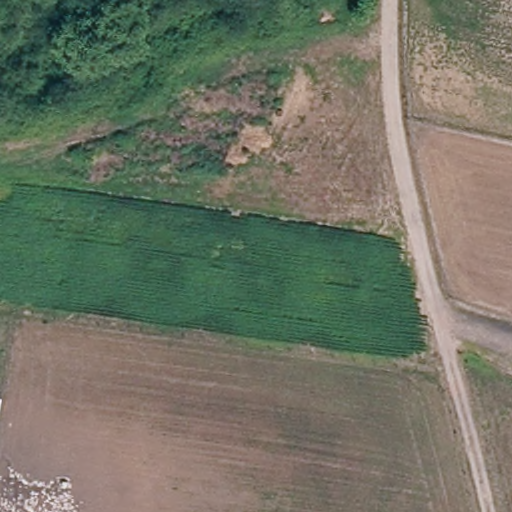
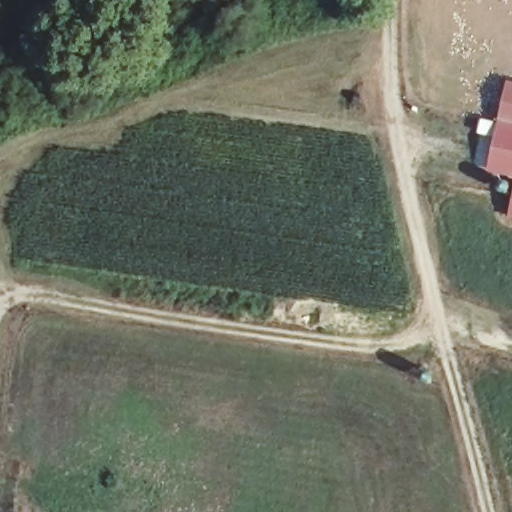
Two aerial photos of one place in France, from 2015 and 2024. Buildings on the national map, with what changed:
new [(512,83),(512,179),(487,174),(507,81),(512,83)]
new [(509,219),(512,201),(512,219),(509,219)]

